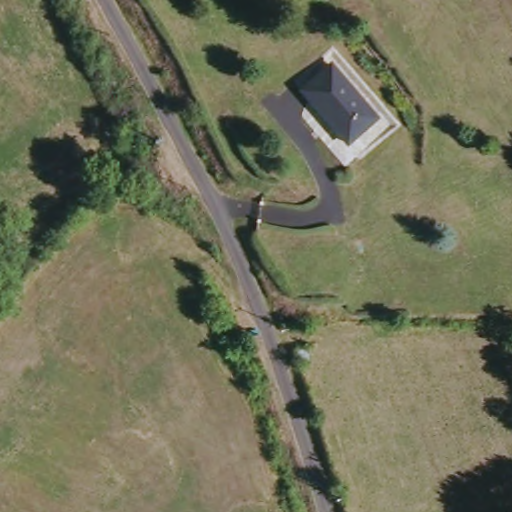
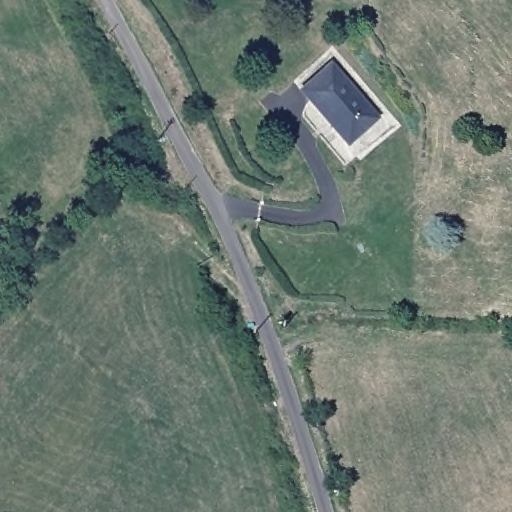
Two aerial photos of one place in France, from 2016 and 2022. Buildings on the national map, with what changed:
unchanged [(335,61),(387,120),(355,152),(305,93),(335,61)]

